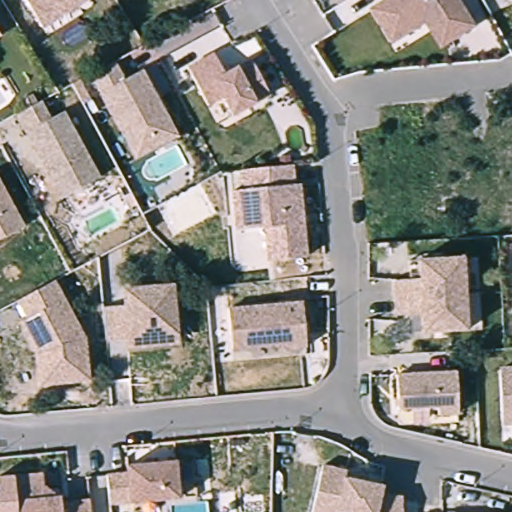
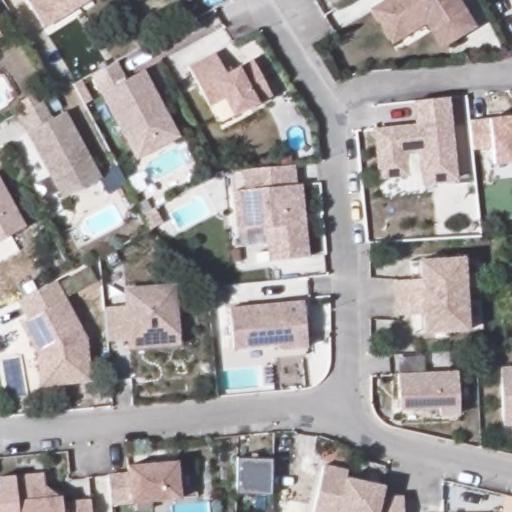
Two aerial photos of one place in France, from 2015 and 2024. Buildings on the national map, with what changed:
unchanged [(70,12),(43,29),(25,0),(90,0),(70,12)]
unchanged [(427,24),(394,45),(373,11),(380,7),(392,0),(459,0),(477,29),(450,45),(443,50),(427,24)]
unchanged [(215,54),(227,74),(253,60),(272,95),(234,116),(225,98),(210,106),(189,68),(215,54)]
unchanged [(132,160),(125,147),(86,76),(111,62),(120,80),(138,70),(172,131),(175,137),(132,160)]
new [(415,128),(412,103),(445,99),(454,181),(422,184),(419,153),(402,155),(405,176),(378,180),(373,132),(415,128)]
unchanged [(42,102),(51,120),(65,112),(100,179),(62,199),(45,168),(27,133),(17,114),(31,107),(42,102)]
new [(512,118),(512,164),(492,166),(490,148),(471,150),(467,123),(512,118)]
unchanged [(233,209),(230,187),(242,186),(241,166),(285,162),(290,161),(292,181),(297,181),(305,253),(266,257),(263,223),(245,225),(235,226),(233,209)]
unchanged [(0,239),(0,181),(24,226),(0,239)]
unchanged [(394,282),(419,281),(418,262),(462,259),(464,296),(395,300),(394,282)]
unchanged [(38,352),(22,321),(28,318),(18,300),(52,282),(55,281),(85,338),(90,380),(48,384),(41,385),(38,352)]
unchanged [(129,347),(128,336),(107,338),(104,308),(127,306),(125,288),(172,284),(177,332),(178,343),(129,347)]
unchanged [(464,296),(467,332),(422,335),(421,316),(397,317),(395,300),(464,296)]
unchanged [(300,302),(304,347),(278,350),(269,345),(230,349),(227,309),(300,302)]
unchanged [(507,424),(501,418),(499,370),(512,370),(512,424),(507,424)]
unchanged [(455,373),(457,415),(437,415),(437,408),(397,409),(396,375),(455,373)]
new [(269,459),(269,496),(232,496),(232,460),(269,459)]
unchanged [(172,461),(175,498),(108,504),(107,494),(105,474),(124,472),(123,465),(172,461)]
unchanged [(345,470),(343,478),(380,487),(378,497),(400,497),(400,512),(335,512),(310,512),(322,465),(345,470)]
unchanged [(46,490),(54,497),(62,496),(63,503),(90,501),(92,512),(0,512),(0,477),(45,473),(46,490)]

